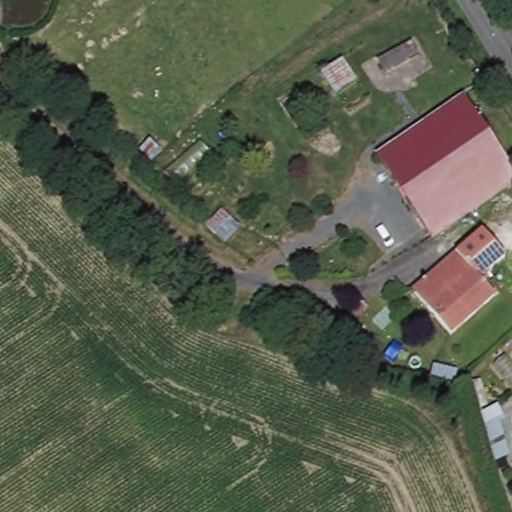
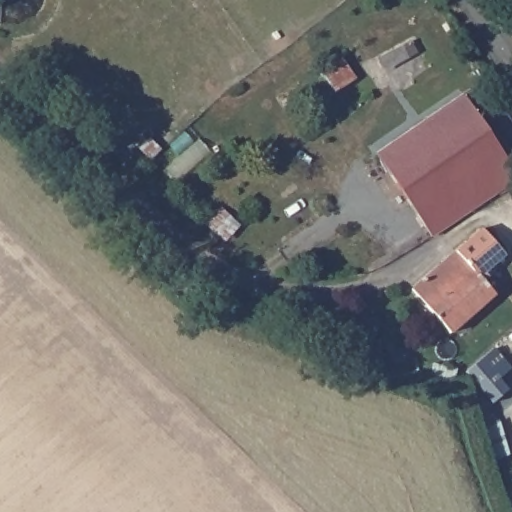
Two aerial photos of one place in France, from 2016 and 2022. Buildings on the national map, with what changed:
unchanged [(341,63),(355,84),(337,101),(322,76),(341,63)]
unchanged [(413,129),(420,140),(470,105),(480,119),(512,166),(512,197),(438,247),(375,154),(413,129)]
unchanged [(230,219),(215,237),(203,229),(221,211),(230,219)]
unchanged [(502,257),(481,276),(495,291),(446,333),(409,290),(479,229),(502,257)]
unchanged [(500,426),(509,461),(492,466),(484,430),(500,426)]

